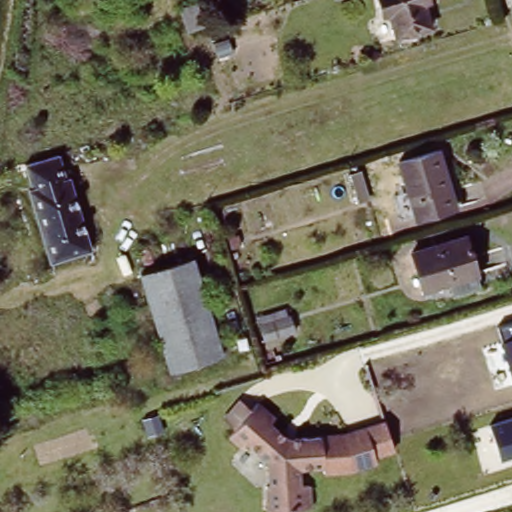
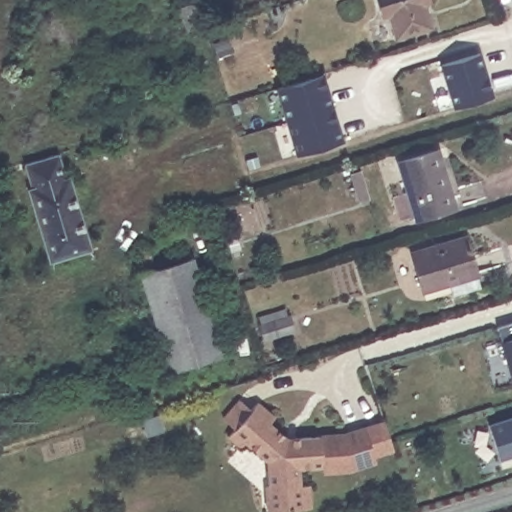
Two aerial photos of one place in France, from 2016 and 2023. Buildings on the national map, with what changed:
unchanged [(427,5),(431,21),(399,31),(391,6),(383,8),(381,0),(432,0),(432,3),(427,5)]
new [(480,53),(493,96),(455,108),(441,65),(480,53)]
new [(322,75),(332,108),(287,122),(277,89),(322,75)]
new [(332,108),(342,142),(297,156),(287,122),(332,108)]
unchanged [(434,149),(440,169),(437,171),(447,207),(411,218),(393,160),(434,149)]
unchanged [(56,156),(63,180),(68,179),(89,251),(47,264),(26,191),(30,189),(23,166),(56,156)]
unchanged [(461,237),(477,287),(447,296),(443,283),(418,290),(407,253),(461,237)]
unchanged [(194,257),(221,354),(170,369),(141,272),(194,257)]
unchanged [(295,316),(300,332),(270,341),(265,326),(295,316)]
unchanged [(512,320),(512,380),(496,324),(512,320)]
unchanged [(234,400),(245,410),(251,404),(269,420),(264,425),(282,441),(315,440),(316,468),(293,470),(293,487),(303,487),(303,510),(261,512),(260,488),(263,488),(261,462),(239,442),(234,447),(222,436),(227,429),(217,419),(234,400)]
unchanged [(512,416),(512,457),(499,461),(488,424),(512,416)]
unchanged [(315,435),(340,434),(381,421),(391,453),(390,453),(375,458),(377,467),(345,475),(321,477),(321,467),(316,468),(315,440),(315,435)]

